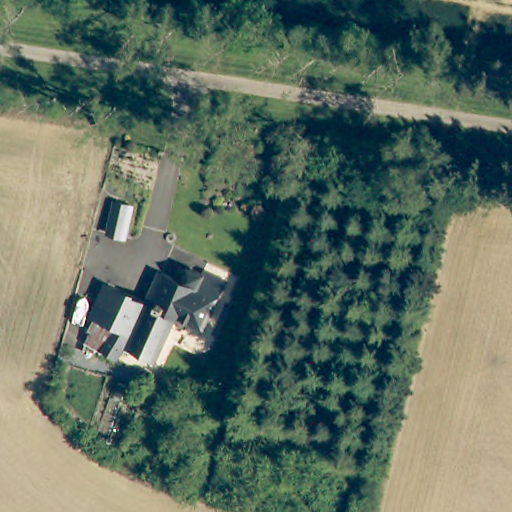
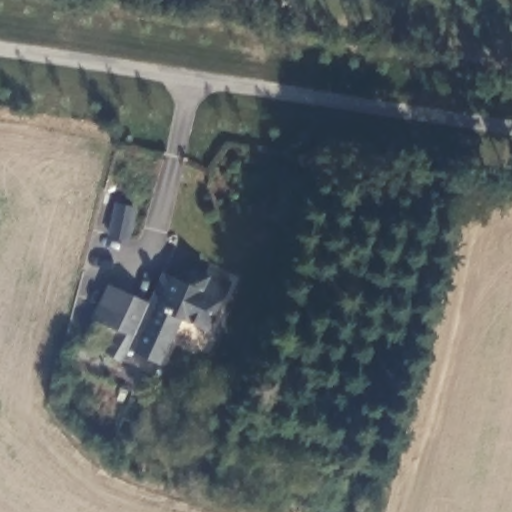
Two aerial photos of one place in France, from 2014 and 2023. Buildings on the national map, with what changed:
unchanged [(140,210),(133,244),(116,240),(124,206),(140,210)]
unchanged [(227,281),(205,327),(176,315),(163,341),(155,361),(123,350),(118,361),(101,353),(114,329),(91,317),(106,284),(146,301),(159,274),(183,284),(192,266),(227,281)]

